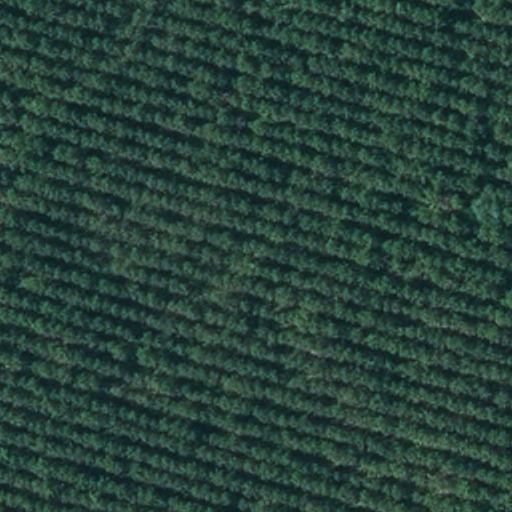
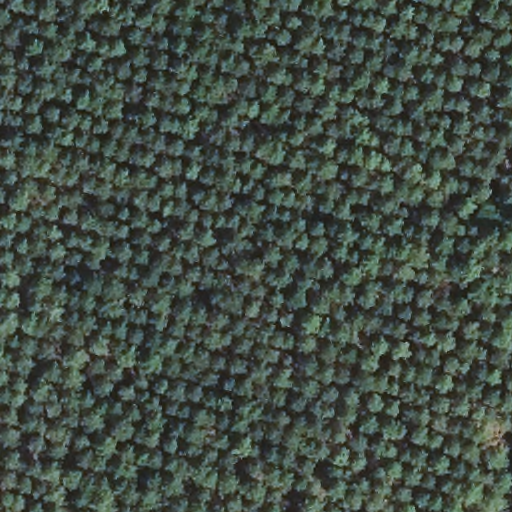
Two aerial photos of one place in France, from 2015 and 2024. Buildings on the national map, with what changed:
[]

